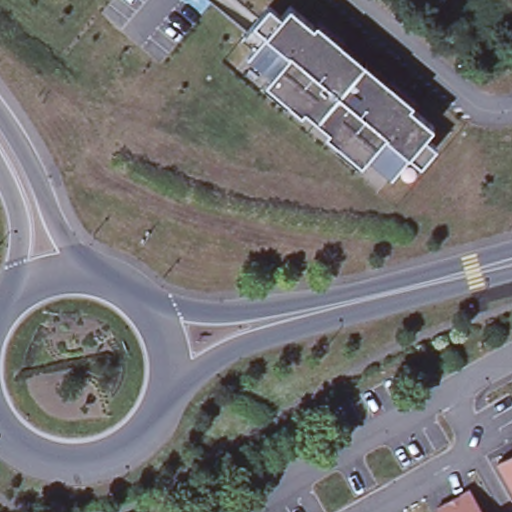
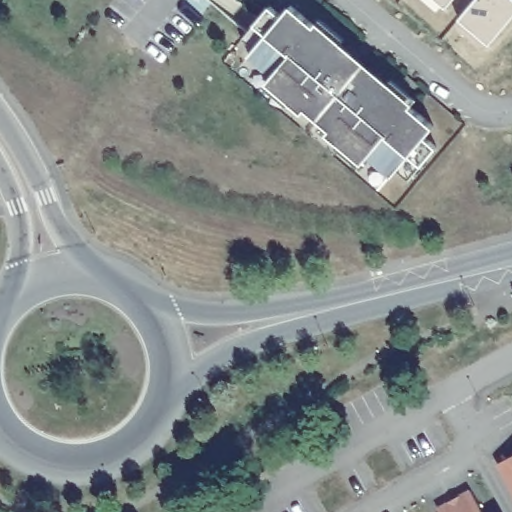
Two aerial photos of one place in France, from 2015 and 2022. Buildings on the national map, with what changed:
new [(444,12),(428,0),(454,0),(444,12)]
new [(512,2),(512,19),(486,50),(456,24),(476,0),(510,0),(512,2)]
unchanged [(375,75),(435,126),(427,137),(439,147),(410,180),(399,170),(394,176),(370,156),(367,160),(271,79),(274,75),(250,55),(255,50),(243,38),(248,32),(271,5),(283,16),(292,5),(352,56),(375,75)]
unchanged [(512,455),(512,494),(496,464),(512,455)]
unchanged [(470,491),(483,512),(441,512),(439,509),(470,491)]

